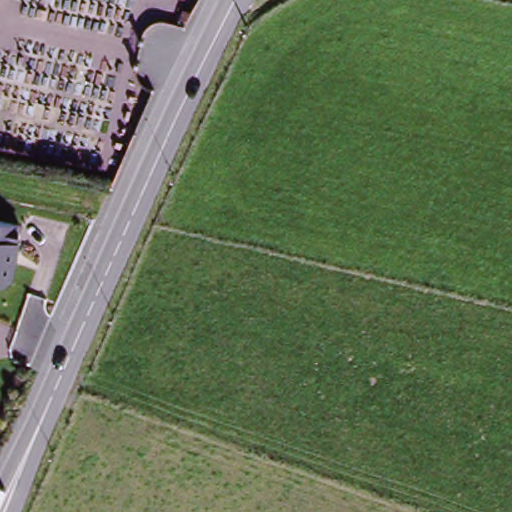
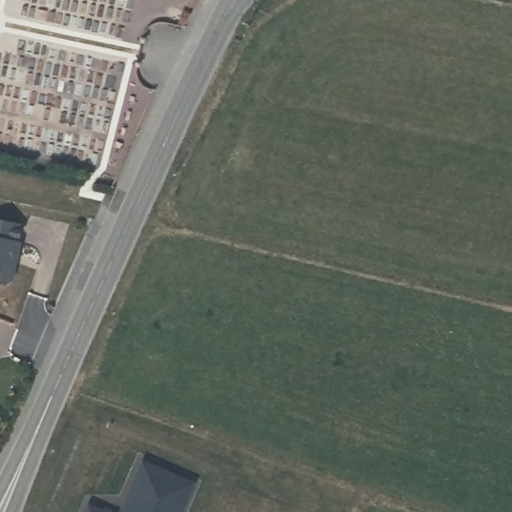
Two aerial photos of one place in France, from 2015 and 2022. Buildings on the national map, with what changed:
unchanged [(21,248),(24,249),(22,256),(20,256),(17,267),(20,267),(16,285),(10,289),(0,287),(0,226),(25,231),(21,248)]
new [(193,482),(180,512),(116,512),(140,458),(193,482)]
new [(81,512),(85,502),(106,512),(81,512)]

